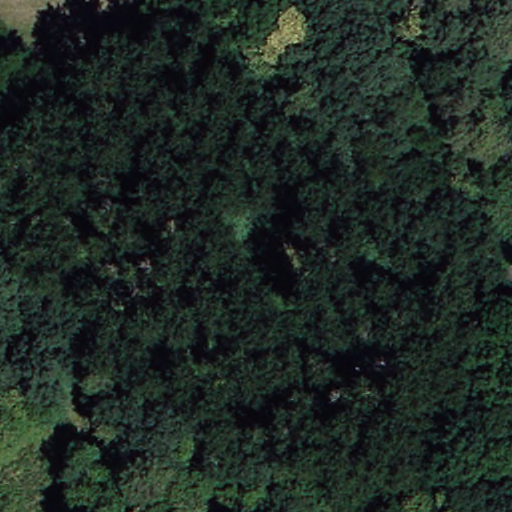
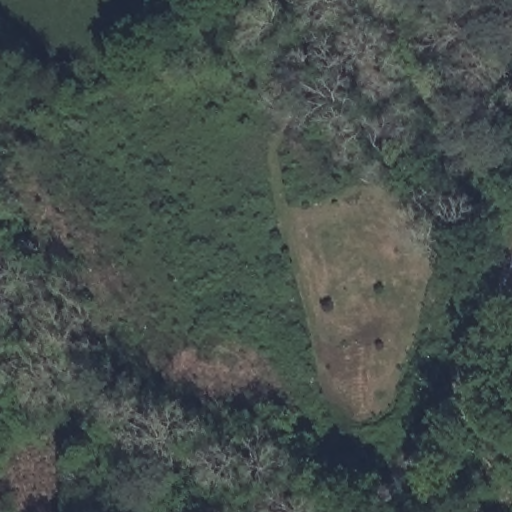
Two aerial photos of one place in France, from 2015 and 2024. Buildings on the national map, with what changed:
[]

